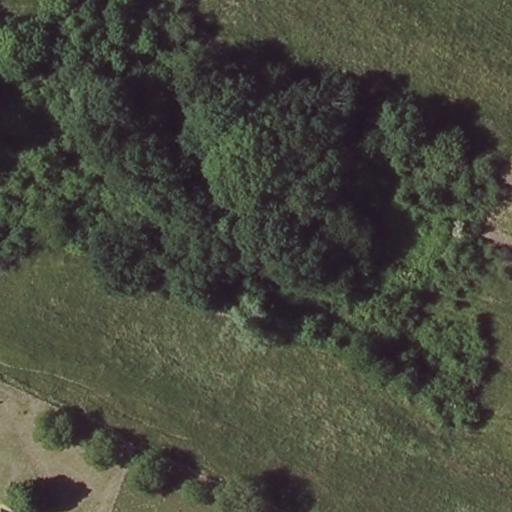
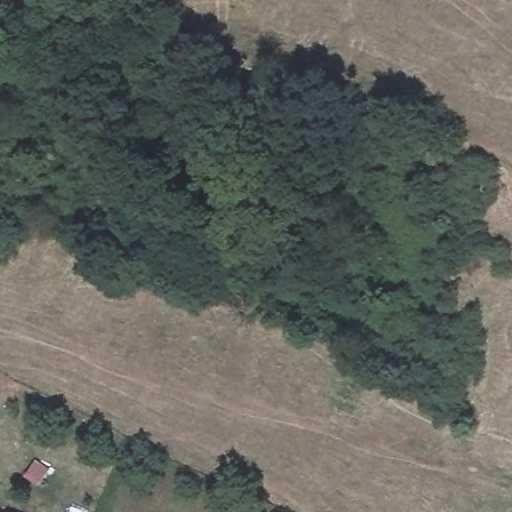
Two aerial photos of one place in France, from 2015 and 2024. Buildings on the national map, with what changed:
[]

